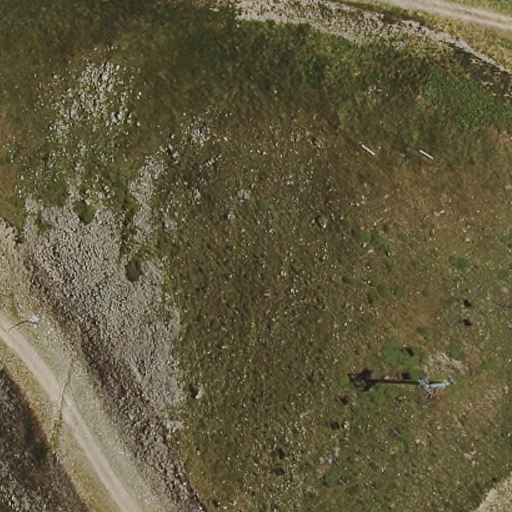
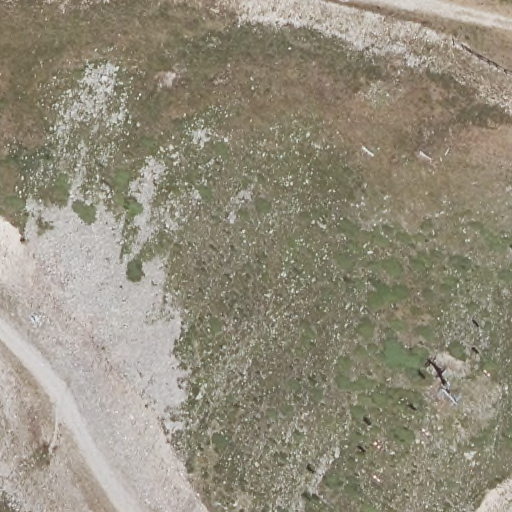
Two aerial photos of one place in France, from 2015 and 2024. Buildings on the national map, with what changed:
[]

